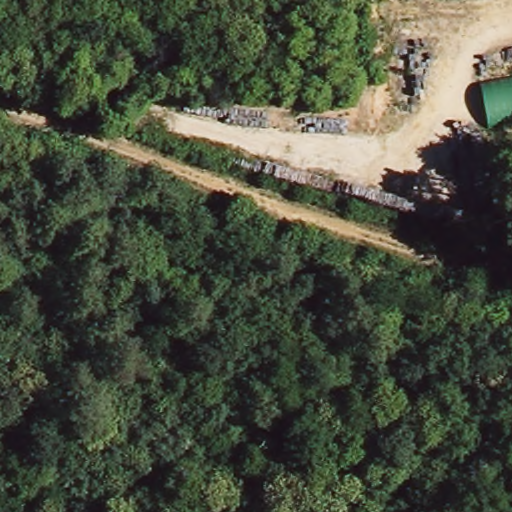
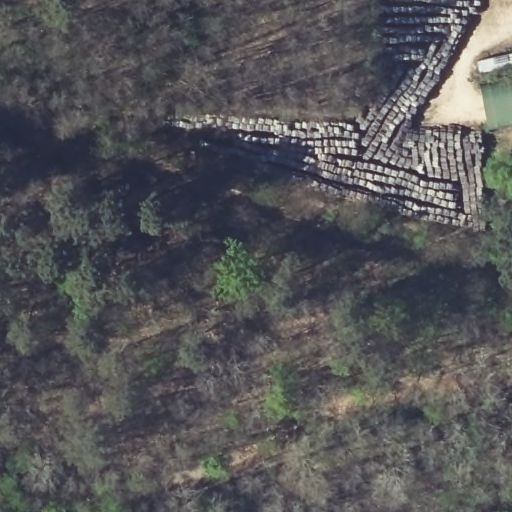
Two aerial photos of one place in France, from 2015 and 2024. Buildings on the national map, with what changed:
unchanged [(489,126),(481,85),(512,79),(512,122),(489,126)]

